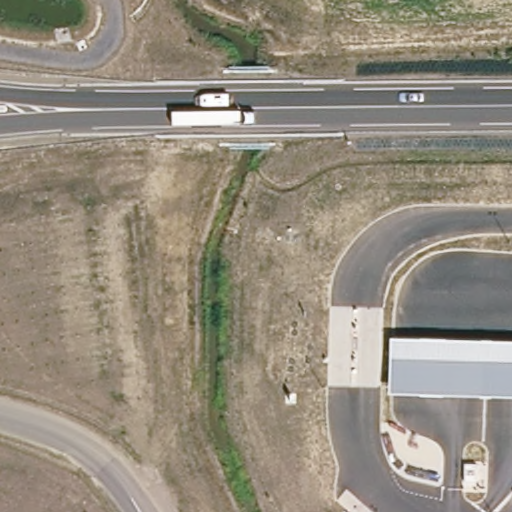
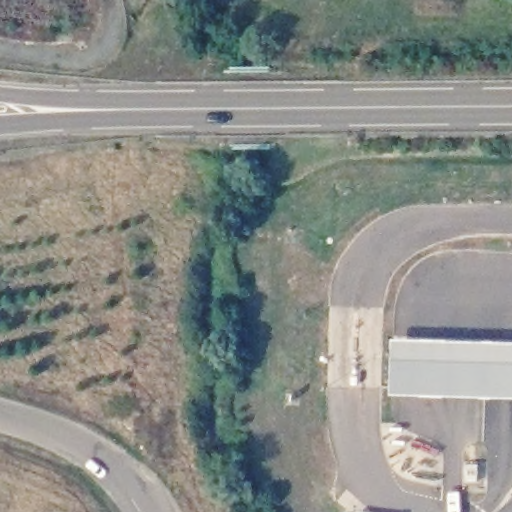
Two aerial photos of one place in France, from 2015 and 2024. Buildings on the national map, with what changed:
unchanged [(390,339),(512,342),(512,398),(388,394),(390,339)]

